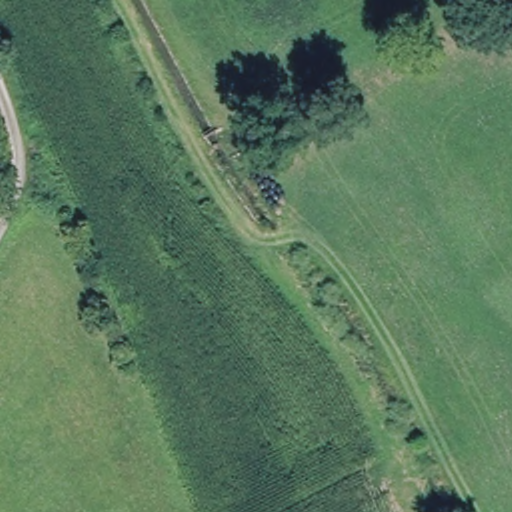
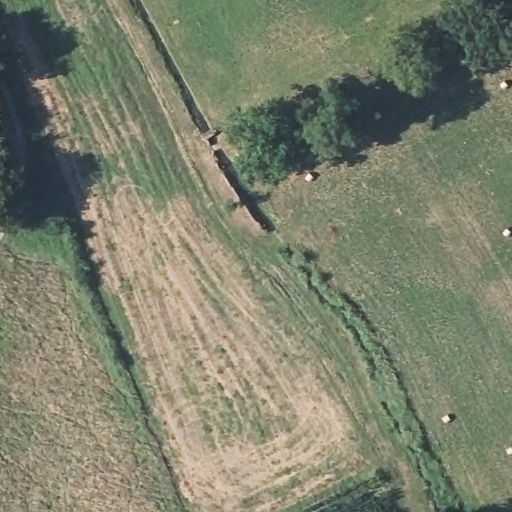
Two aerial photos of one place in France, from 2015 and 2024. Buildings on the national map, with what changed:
unchanged [(366,169),(373,181),(361,190),(353,176),(366,169)]

